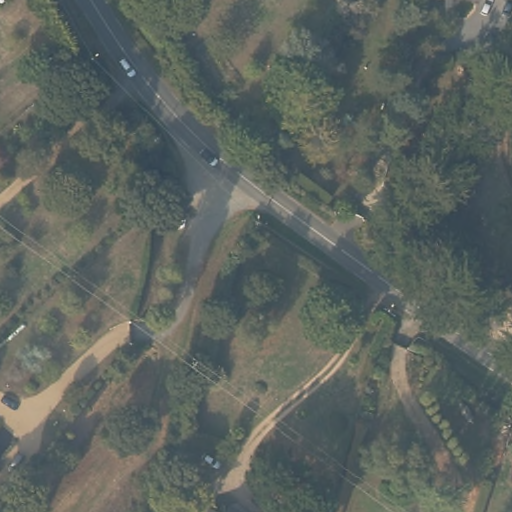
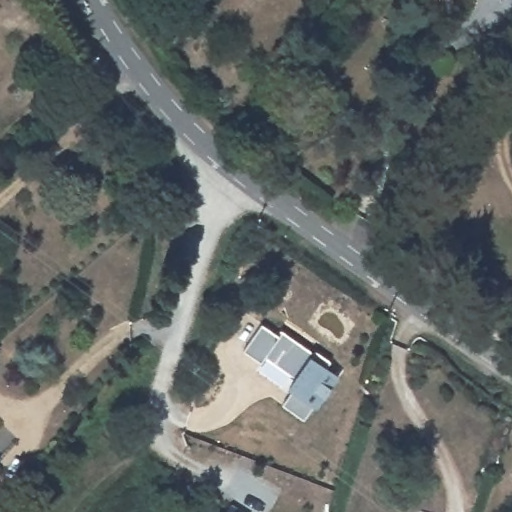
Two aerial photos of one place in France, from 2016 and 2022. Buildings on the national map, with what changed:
unchanged [(2,155),(0,156),(0,153),(2,155)]
new [(328,367),(340,376),(317,408),(313,405),(303,418),(283,403),(292,390),(286,387),(295,376),(265,355),(261,360),(243,348),(262,323),(279,334),(282,330),(314,352),(316,350),(332,361),(328,367)]
unchanged [(243,512),(227,512),(232,505),(243,512)]
unchanged [(212,510),(215,512),(210,512),(212,510)]

